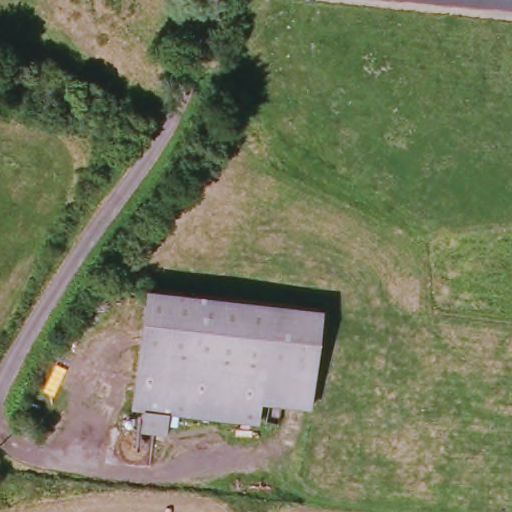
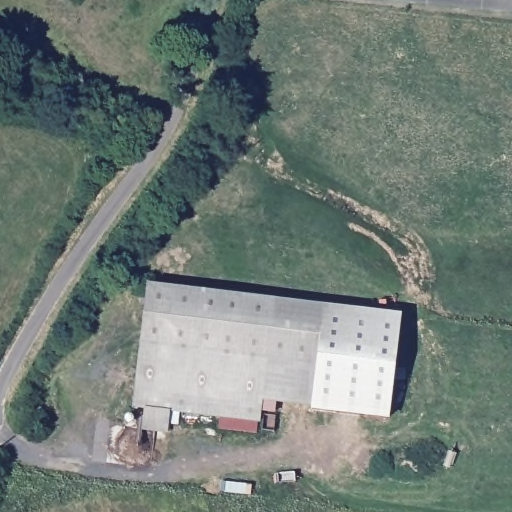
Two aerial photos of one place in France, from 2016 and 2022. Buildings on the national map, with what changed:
unchanged [(259,420),(170,409),(169,433),(145,431),(147,408),(137,407),(149,288),(322,306),(311,402),(261,398),(259,420)]
new [(401,315),(390,420),(310,411),(311,402),(322,306),(401,315)]

